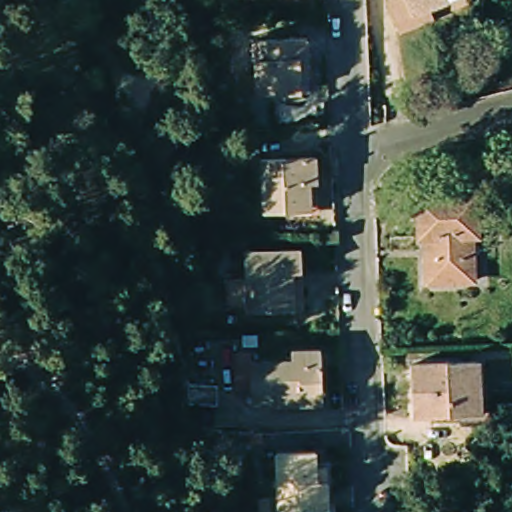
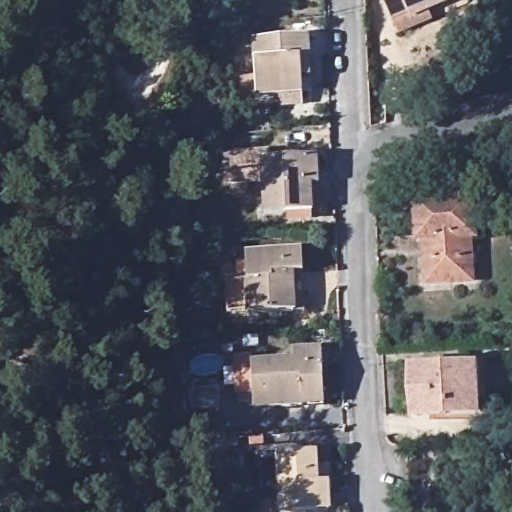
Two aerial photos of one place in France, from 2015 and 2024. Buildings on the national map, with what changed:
unchanged [(412,14),(395,22),(385,0),(458,0),(415,19),(412,14)]
unchanged [(260,97),(257,42),(311,38),(312,59),(312,74),(304,74),(304,95),(260,97)]
unchanged [(292,211),(268,212),(266,158),(320,156),(321,183),(315,183),(315,201),(316,210),(292,211)]
unchanged [(476,236),(471,236),(472,279),(427,281),(426,237),(420,237),(418,199),(475,197),(476,236)]
unchanged [(291,312),(245,313),(243,255),(299,255),(299,273),(300,311),(291,312)]
unchanged [(305,403),(255,405),(254,361),(294,359),(294,350),(315,350),(323,349),(324,365),(325,395),(325,402),(305,403)]
unchanged [(451,414),(412,416),(410,363),(479,360),(480,402),(480,413),(451,414)]
unchanged [(317,512),(285,512),(283,452),(321,451),(322,467),(330,467),(331,482),(333,511),(317,512)]
unchanged [(267,503),(278,503),(278,512),(268,512),(267,503)]

